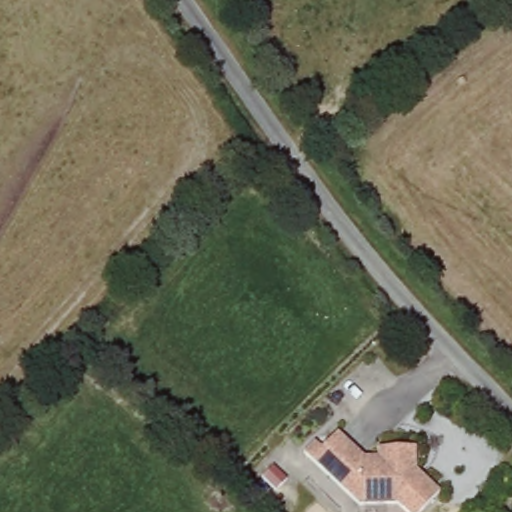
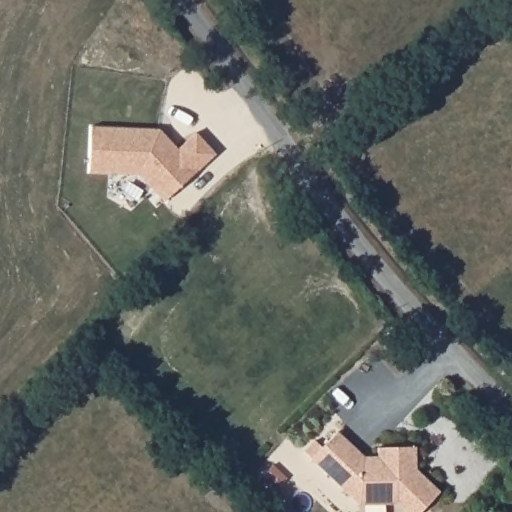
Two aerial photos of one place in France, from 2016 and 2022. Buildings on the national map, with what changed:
new [(140,175),(90,173),(91,128),(157,129),(177,148),(197,130),(217,155),(164,203),(140,175)]
unchanged [(359,506),(312,459),(305,452),(315,441),(322,448),(338,433),(363,458),(378,458),(378,449),(415,449),(415,472),(438,495),(421,512),(403,512),(397,506),(359,506)]

